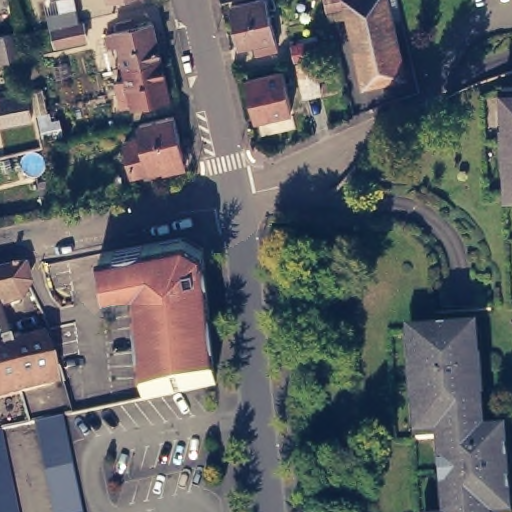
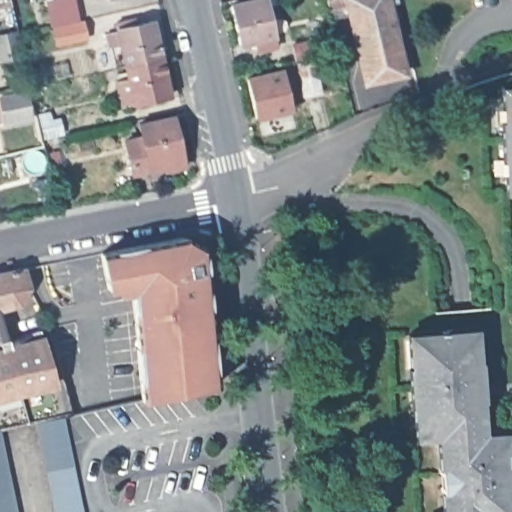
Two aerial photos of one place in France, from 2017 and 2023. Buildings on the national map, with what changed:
unchanged [(258,46),(256,36),(240,40),(232,0),(234,0),(269,0),(279,41),(258,46)]
unchanged [(405,69),(366,77),(347,10),(331,14),(327,0),(389,0),(405,69)]
unchanged [(126,62),(121,40),(109,41),(107,29),(118,26),(118,24),(153,15),(162,53),(126,62)]
unchanged [(54,29),(83,21),(87,40),(58,46),(54,29)]
unchanged [(2,57),(0,50),(0,36),(15,31),(19,55),(2,57)]
unchanged [(293,45),(327,39),(328,53),(295,60),(293,45)]
unchanged [(171,91),(151,96),(152,100),(140,102),(139,99),(135,100),(122,103),(116,78),(129,74),(126,62),(162,53),(171,91)]
unchanged [(317,61),(327,91),(306,97),(296,69),(317,61)]
unchanged [(256,119),(248,79),(284,70),(292,110),(256,119)]
unchanged [(506,170),(506,154),(504,154),(502,116),(504,116),(503,100),(502,82),(512,82),(512,188),(507,188),(506,170)]
unchanged [(23,85),(29,112),(0,119),(0,92),(23,85)]
unchanged [(175,116),(186,166),(166,170),(166,167),(133,175),(125,140),(142,136),(139,124),(175,116)]
unchanged [(49,157),(46,142),(56,140),(60,155),(49,157)]
unchanged [(224,382),(138,401),(130,291),(115,294),(112,287),(106,288),(98,252),(160,241),(158,230),(187,225),(210,242),(224,382)]
unchanged [(286,232),(299,230),(300,242),(288,244),(286,232)]
unchanged [(23,268),(28,287),(20,303),(0,309),(0,273),(23,268)]
unchanged [(440,455),(439,438),(417,440),(416,422),(414,405),(413,405),(410,368),(412,368),(410,352),(409,334),(478,329),(480,363),(482,363),(485,400),(483,400),(486,434),(507,432),(512,505),(512,512),(444,512),(444,505),(440,455)]
unchanged [(41,330),(44,340),(56,383),(0,399),(0,341),(41,330)]
unchanged [(66,417),(85,512),(56,512),(38,423),(66,417)]
unchanged [(3,426),(20,512),(0,512),(0,427),(3,426)]

